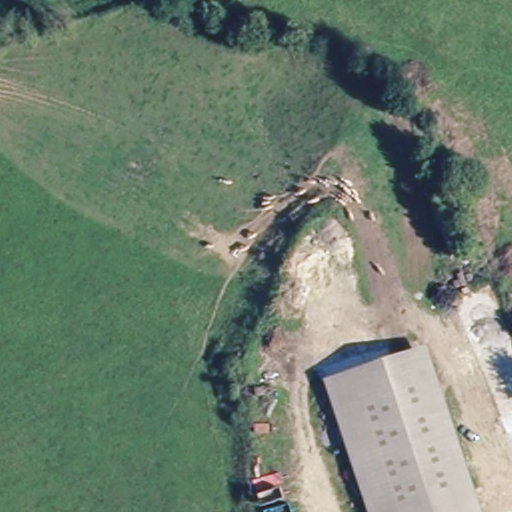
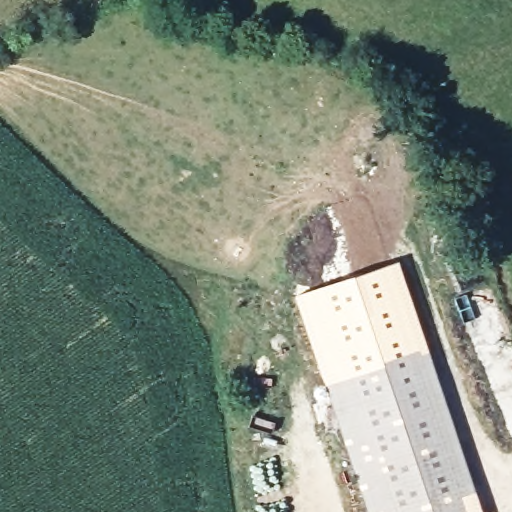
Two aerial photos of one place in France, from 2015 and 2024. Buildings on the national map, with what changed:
new [(419,358),(333,385),(328,388),(297,296),(400,261),(483,512),(469,512),(419,358)]
unchanged [(469,512),(374,512),(333,385),(419,358),(469,512)]

